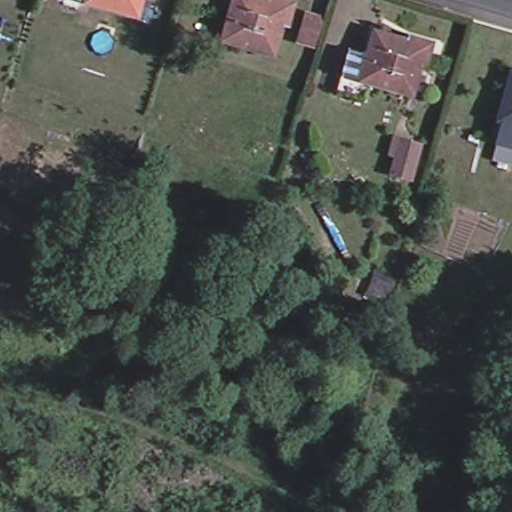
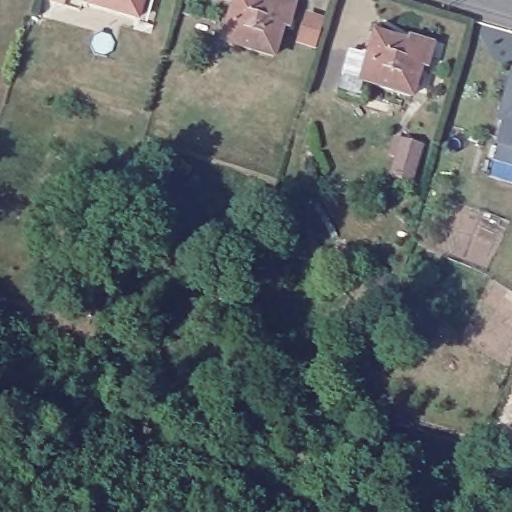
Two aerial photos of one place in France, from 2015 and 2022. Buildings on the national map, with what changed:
unchanged [(141,0),(137,15),(88,0),(141,0)]
unchanged [(236,0),(250,0),(269,6),(271,0),(273,0),(294,6),(286,30),(281,28),(272,59),(223,44),(236,0)]
unchanged [(328,23),(324,34),(319,49),(303,44),(311,18),(328,23)]
unchanged [(392,37),(378,85),(383,86),(378,102),(353,94),(365,46),(386,54),(392,37)]
unchanged [(424,40),(447,46),(439,70),(434,69),(425,99),(383,86),(378,85),(386,54),(392,37),(423,46),(424,40)]
unchanged [(499,120),(512,75),(512,123),(499,120)]

